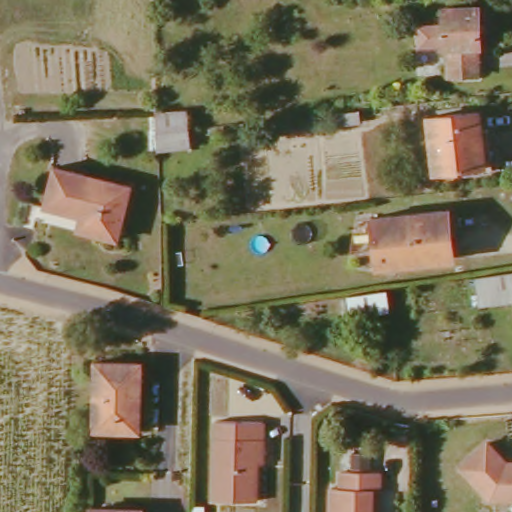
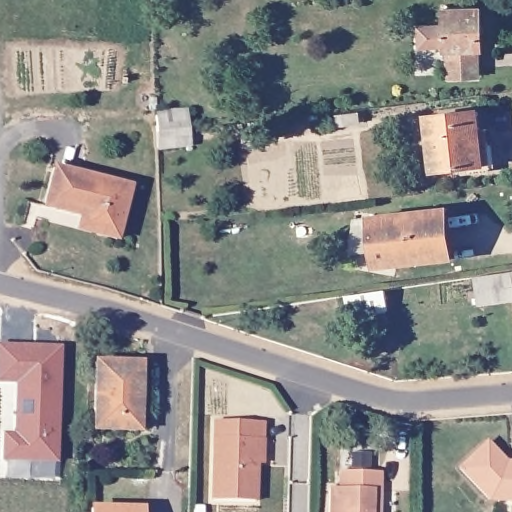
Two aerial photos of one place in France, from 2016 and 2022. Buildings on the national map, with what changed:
unchanged [(487,70),(457,72),(457,44),(452,44),(452,41),(428,42),(428,23),(453,22),(452,7),(487,6),(487,70)]
unchanged [(485,166),(434,173),(430,121),(480,114),(485,166)]
unchanged [(195,147),(162,150),(162,135),(161,119),(192,115),(193,131),(195,147)]
unchanged [(88,217),(52,209),(65,169),(137,187),(122,241),(102,237),(84,232),(88,217)]
unchanged [(452,211),(455,254),(427,258),(427,266),(383,272),(380,222),(452,211)]
unchanged [(482,310),(479,283),(512,277),(512,306),(482,310)]
unchanged [(372,293),(374,316),(338,320),(337,300),(372,293)]
new [(1,432),(14,432),(15,384),(0,383),(0,344),(62,347),(57,462),(1,461),(1,432)]
unchanged [(147,367),(147,407),(137,407),(137,433),(102,432),(103,367),(147,367)]
unchanged [(267,423),(267,441),(259,442),(258,503),(215,502),(218,422),(267,423)]
unchanged [(492,499),(463,470),(490,444),(510,462),(512,463),(512,500),(492,499)]
unchanged [(347,483),(347,467),(390,468),(390,487),(382,487),(382,512),(336,512),(337,483),(347,483)]

